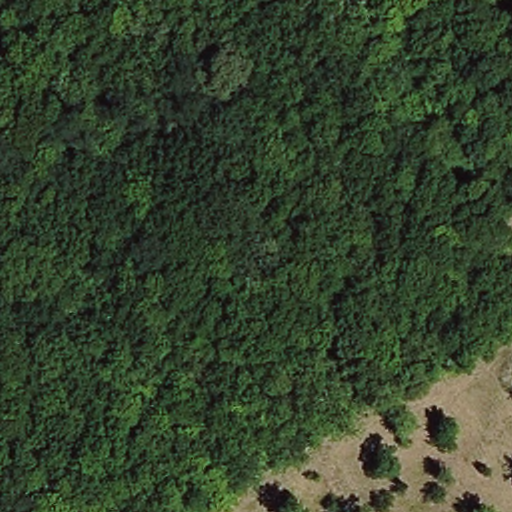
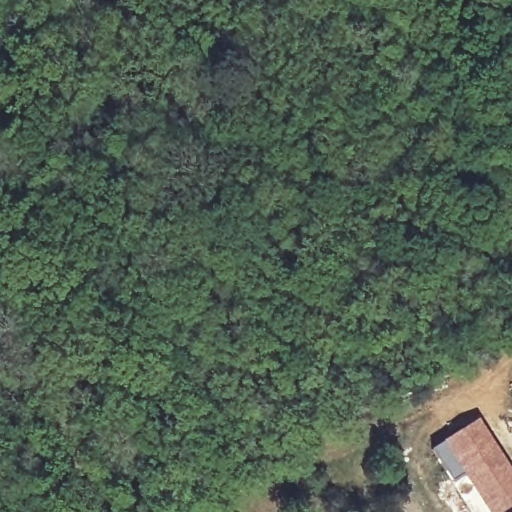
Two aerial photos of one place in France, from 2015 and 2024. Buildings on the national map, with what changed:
new [(430,450),(478,418),(512,471),(512,512),(471,512),(452,484),(430,450)]

